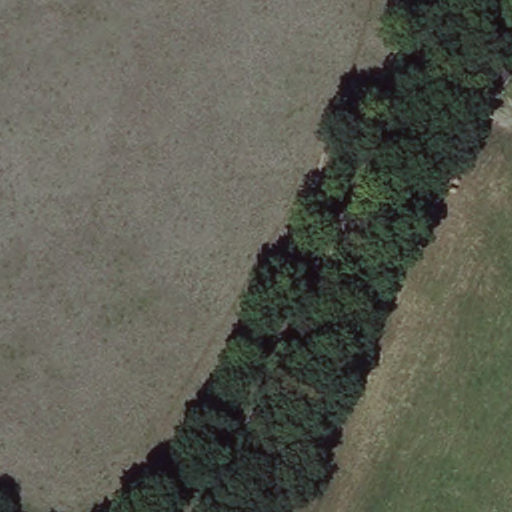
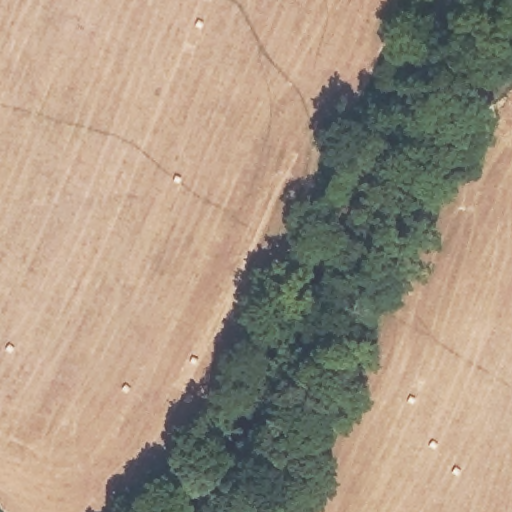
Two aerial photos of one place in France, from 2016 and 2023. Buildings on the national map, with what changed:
unchanged [(470,98),(489,72),(504,85),(487,112),(470,98)]

